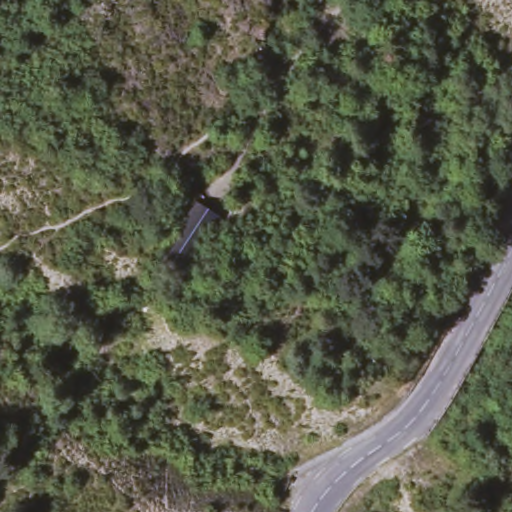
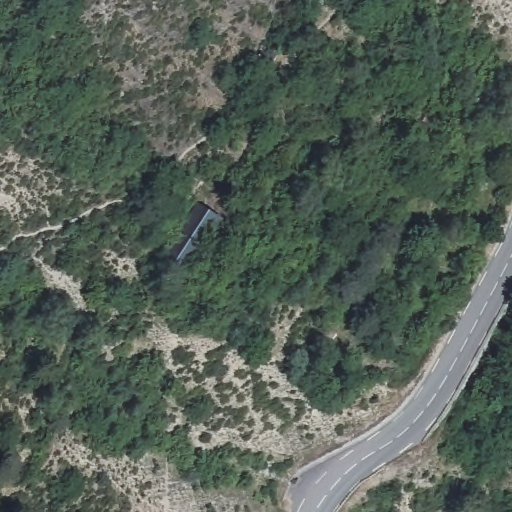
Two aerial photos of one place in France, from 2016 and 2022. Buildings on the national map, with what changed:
unchanged [(215,225),(172,286),(152,271),(189,210),(215,225)]

